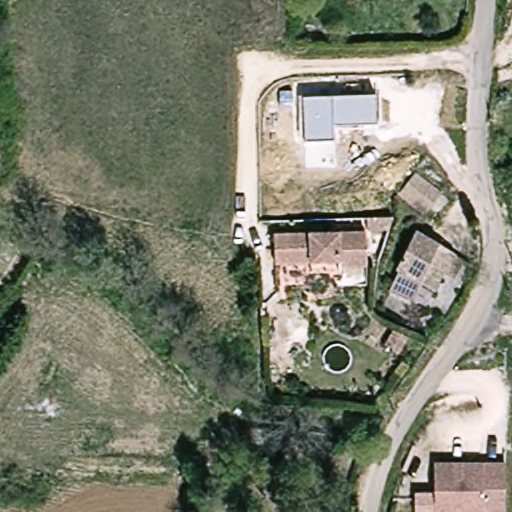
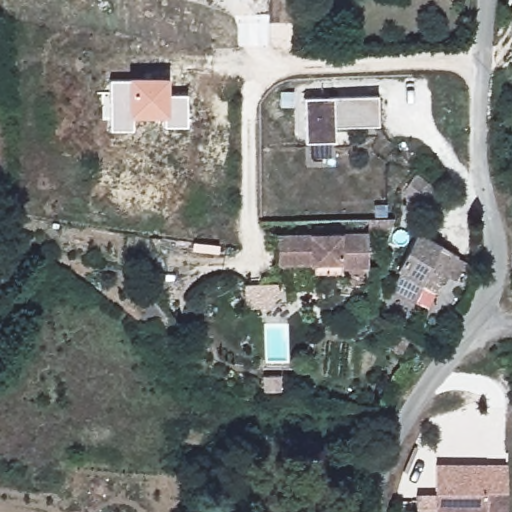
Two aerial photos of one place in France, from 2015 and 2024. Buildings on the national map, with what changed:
new [(110,80),(139,80),(140,115),(132,115),(132,130),(110,131),(110,80)]
new [(165,115),(140,115),(139,80),(162,80),(162,94),(187,95),(187,127),(165,126),(165,115)]
unchanged [(378,124),(333,124),(333,140),(305,140),(304,97),(378,95),(378,124)]
unchanged [(402,194),(417,175),(443,197),(430,214),(428,215),(402,194)]
unchanged [(454,253),(436,288),(427,285),(417,305),(393,293),(401,274),(396,270),(415,232),(454,253)]
unchanged [(310,275),(308,266),(272,265),(272,240),(361,237),(362,266),(357,270),(338,270),(338,275),(310,275)]
unchanged [(509,512),(419,512),(419,496),(438,496),(438,466),(510,466),(509,512)]

